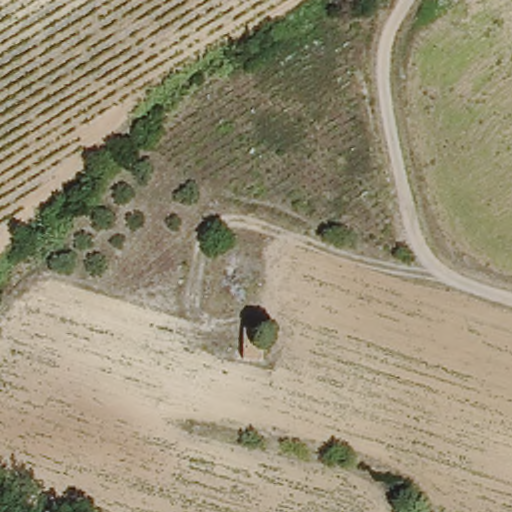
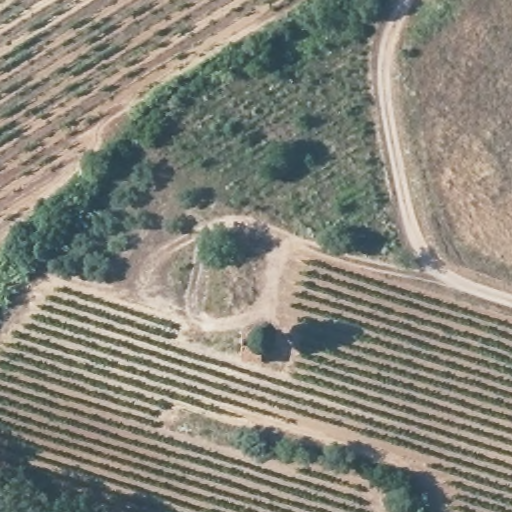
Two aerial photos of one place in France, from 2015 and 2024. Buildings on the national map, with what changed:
unchanged [(259,334),(258,344),(254,356),(240,350),(243,331),(259,334)]

